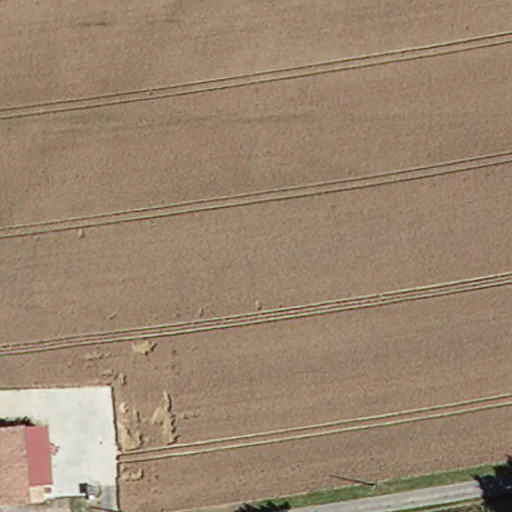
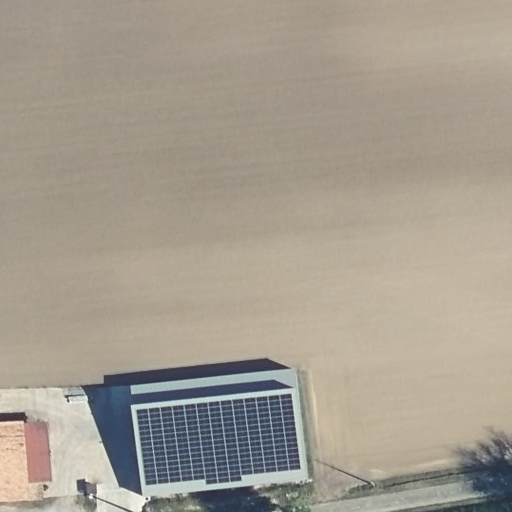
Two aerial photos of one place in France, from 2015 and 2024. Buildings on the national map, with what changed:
new [(134,407),(133,387),(297,369),(299,390),(307,480),(144,497),(134,407)]
new [(39,484),(38,477),(24,477),(21,425),(49,423),(54,482),(39,484)]
unchanged [(38,477),(39,497),(0,500),(0,427),(21,425),(24,477),(38,477)]

